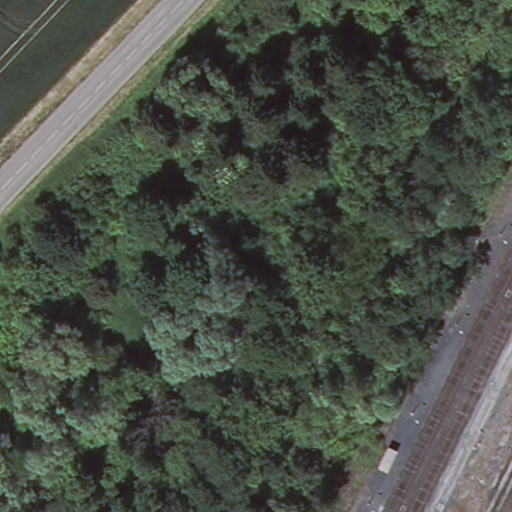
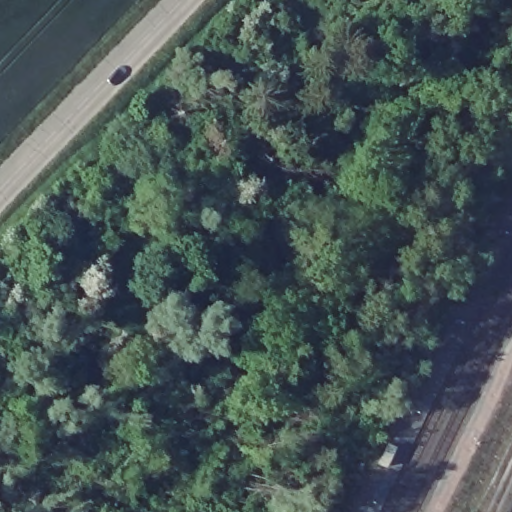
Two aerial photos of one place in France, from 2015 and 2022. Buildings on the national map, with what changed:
unchanged [(382,441),(395,446),(385,467),(373,465),(382,441)]

